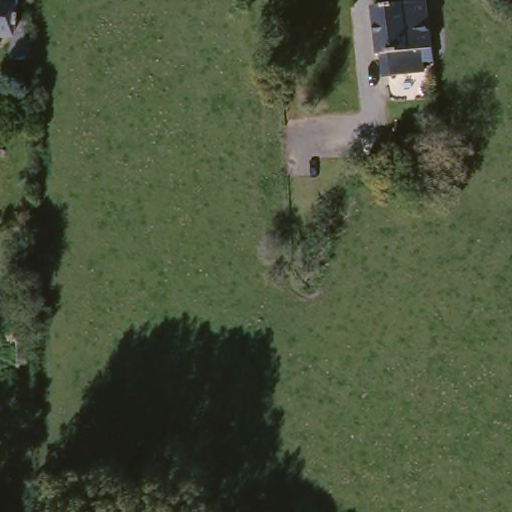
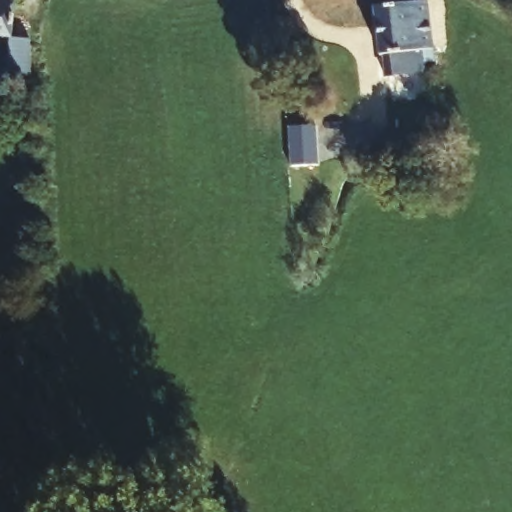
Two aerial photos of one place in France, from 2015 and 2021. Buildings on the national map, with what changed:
unchanged [(433,69),(422,70),(423,80),(391,84),(391,83),(382,84),(380,64),(378,64),(372,16),(426,10),(433,69)]
unchanged [(0,63),(0,24),(14,24),(15,63),(0,63)]
new [(316,128),(319,168),(291,169),(287,129),(316,128)]

